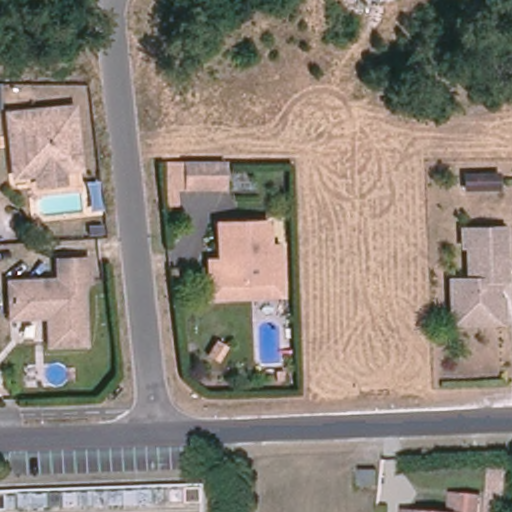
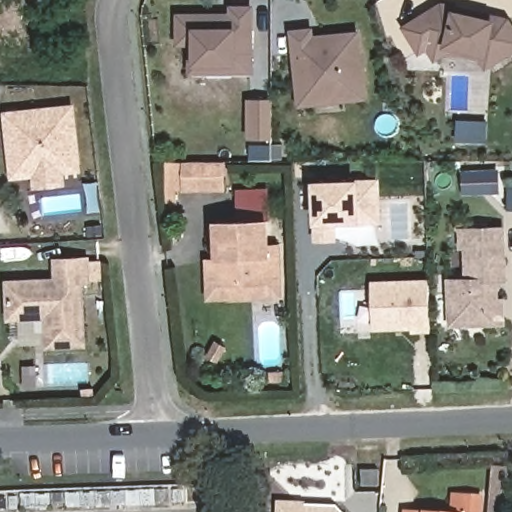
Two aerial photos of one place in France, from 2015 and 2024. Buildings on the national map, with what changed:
new [(512,20),(512,54),(486,72),(479,60),(449,52),(435,62),(428,49),(420,55),(403,26),(443,1),(509,15),(512,20)]
new [(256,74),(190,74),(192,66),(192,45),(177,45),(177,12),(230,12),(230,5),(256,4),(256,74)]
new [(368,100),(298,107),(291,29),(315,27),(316,35),(361,30),(368,100)]
unchanged [(28,172),(10,175),(5,135),(0,135),(0,115),(61,109),(67,168),(50,170),(51,181),(29,184),(28,172)]
new [(489,121),(488,139),(461,139),(460,122),(489,121)]
unchanged [(498,164),(498,179),(469,180),(468,165),(498,164)]
unchanged [(205,166),(216,166),(217,191),(182,191),(181,166),(205,166)]
new [(380,179),(381,222),(315,226),(313,182),(360,180),(380,179)]
unchanged [(221,257),(220,222),(270,221),(271,241),(272,281),(222,282),(221,257)]
unchanged [(503,322),(452,324),(450,280),(460,280),(468,280),(467,246),(462,246),(462,230),(503,228),(505,279),(496,280),(497,302),(502,301),(503,322)]
unchanged [(283,297),(213,298),(211,258),(221,257),(222,282),(272,281),(271,241),(281,241),(283,297)]
unchanged [(89,345),(54,345),(53,316),(15,317),(14,283),(63,282),(62,261),(92,260),(92,282),(85,282),(89,345)]
new [(412,333),(412,328),(373,330),(371,282),(428,281),(430,332),(412,333)]
unchanged [(508,480),(506,500),(493,498),(496,469),(509,470),(508,480)]
unchanged [(380,487),(362,487),(362,471),(380,471),(380,487)]
unchanged [(480,512),(460,512),(462,492),(481,493),(480,512)]
new [(280,505),(337,507),(342,512),(280,512),(280,505)]
unchanged [(406,510),(433,512),(406,512),(406,510)]

